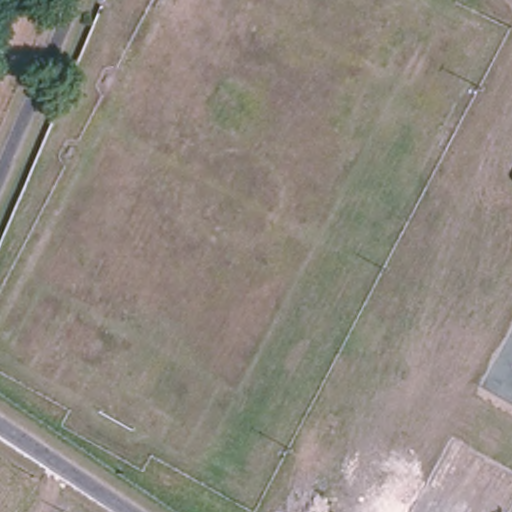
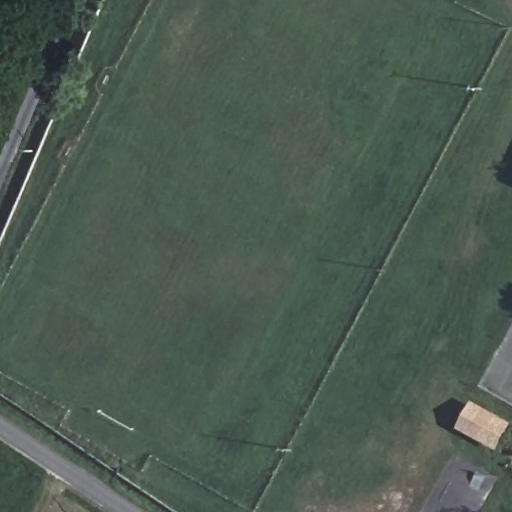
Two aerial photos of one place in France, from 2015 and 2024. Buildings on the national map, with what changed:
new [(472,399),(510,421),(496,450),(456,429),(472,399)]

